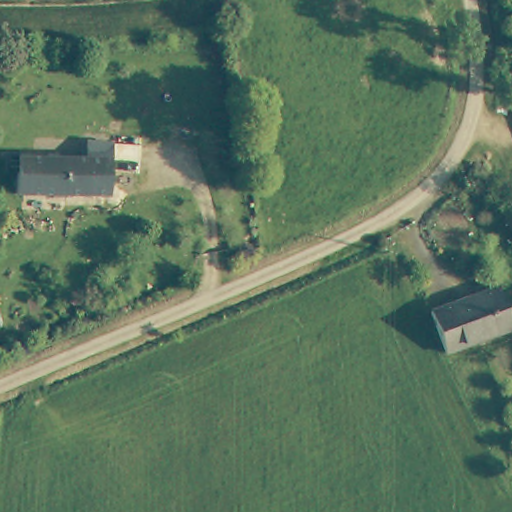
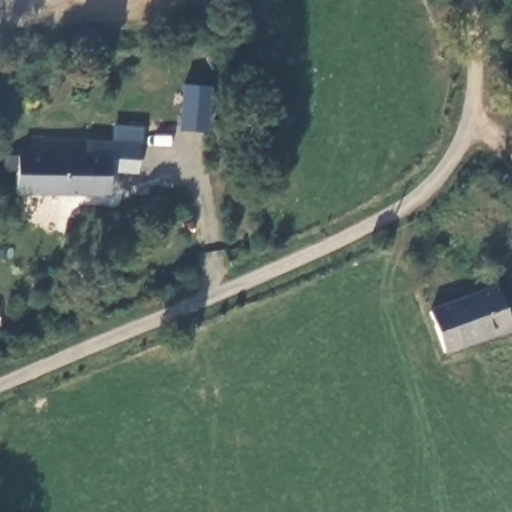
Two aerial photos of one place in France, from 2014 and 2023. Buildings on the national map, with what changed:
new [(185,89),(210,91),(205,131),(180,129),(185,89)]
unchanged [(14,172),(4,172),(3,157),(107,160),(108,198),(14,196),(14,172)]
unchanged [(440,350),(425,309),(492,283),(507,325),(440,350)]

